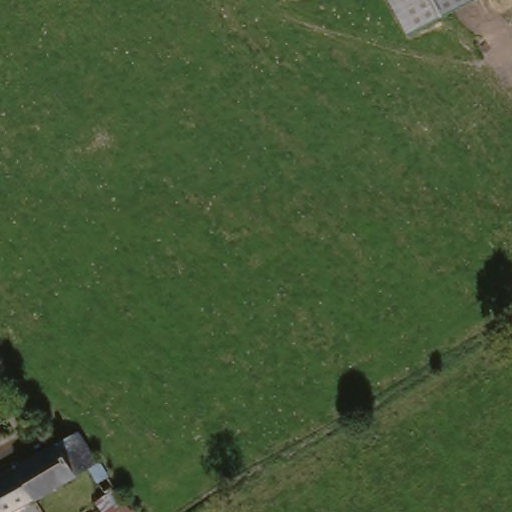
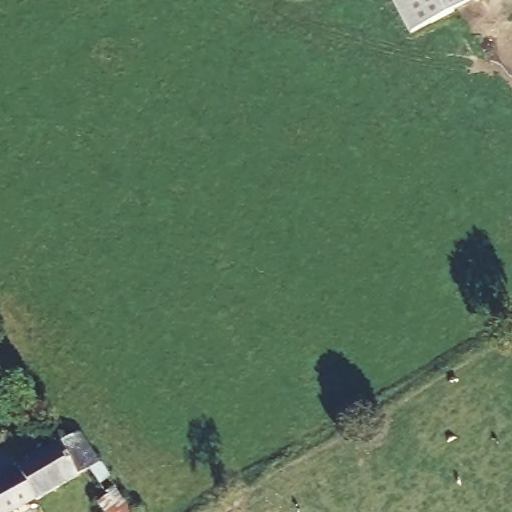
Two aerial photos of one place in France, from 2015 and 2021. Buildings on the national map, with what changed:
unchanged [(389,0),(473,0),(407,35),(389,0)]
unchanged [(107,504),(112,500),(97,473),(42,505),(41,503),(22,472),(62,450),(85,437),(122,492),(136,512),(112,512),(107,504)]
unchanged [(7,486),(6,482),(22,472),(41,503),(25,512),(0,512),(0,490),(7,486)]

